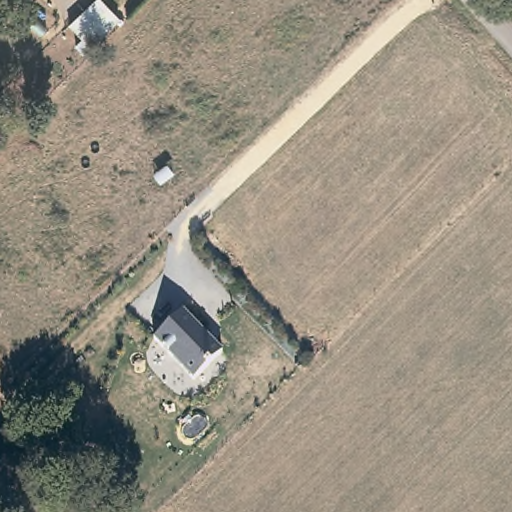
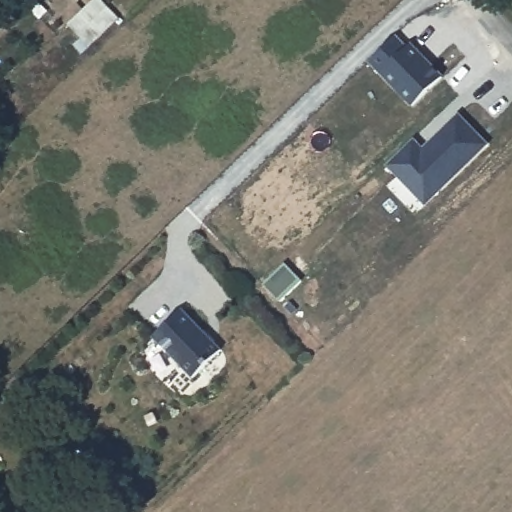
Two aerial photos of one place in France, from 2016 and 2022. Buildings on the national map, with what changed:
unchanged [(101,0),(120,21),(81,59),(72,49),(80,43),(66,25),(93,0),(101,0)]
new [(397,36),(407,48),(411,43),(444,77),(439,81),(411,105),(380,71),(371,61),(397,36)]
new [(413,139),(423,149),(459,115),(487,145),(435,195),(419,176),(409,186),(387,163),(413,139)]
unchanged [(182,309),(221,350),(191,381),(153,340),(182,309)]

